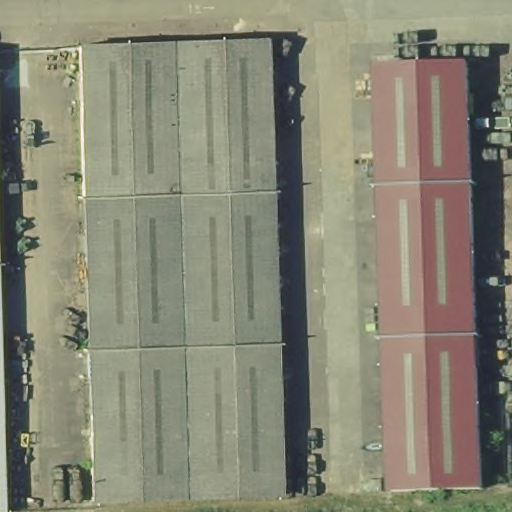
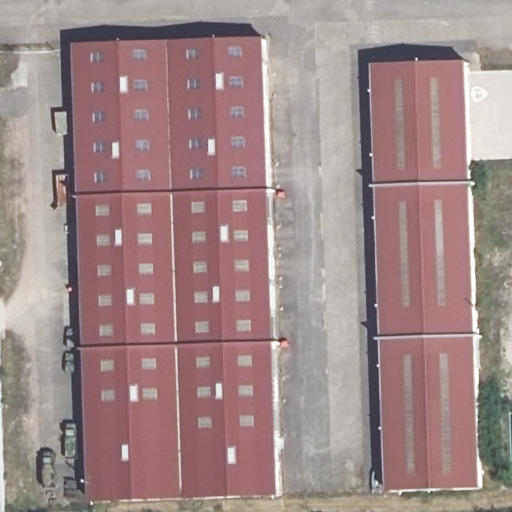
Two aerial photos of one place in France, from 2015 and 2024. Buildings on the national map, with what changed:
unchanged [(271,35),(286,491),(99,497),(85,41),(271,35)]
unchanged [(475,59),(487,484),(395,487),(383,61),(475,59)]
unchanged [(12,508),(0,508),(0,128),(12,508)]

